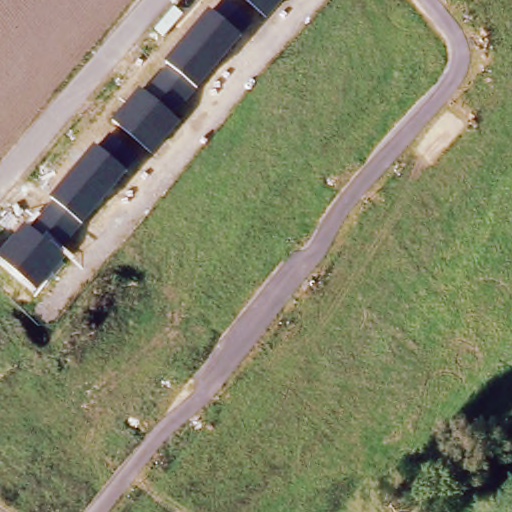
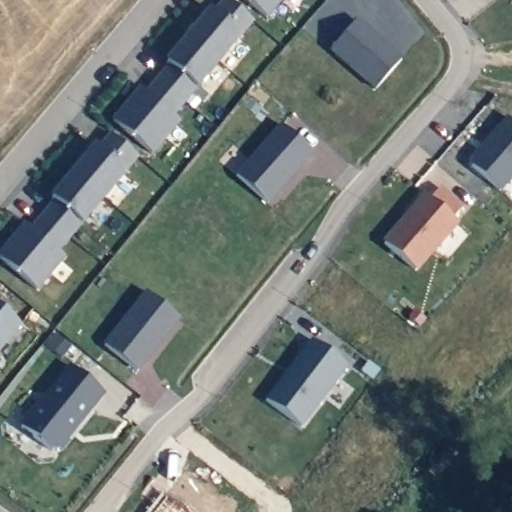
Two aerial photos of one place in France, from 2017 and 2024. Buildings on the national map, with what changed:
unchanged [(252,21),(240,36),(196,88),(173,116),(180,122),(153,154),(112,119),(138,87),(145,91),(168,63),(165,61),(208,9),(212,11),(222,0),(226,0),(252,21)]
unchanged [(267,18),(245,0),(283,0),(267,18)]
new [(402,59),(377,88),(331,48),(357,19),(402,59)]
new [(472,166),(472,158),(508,117),(512,120),(512,178),(502,190),(472,166)]
new [(235,175),(279,124),(313,154),(268,204),(235,175)]
unchanged [(138,156),(127,171),(82,225),(61,253),(65,256),(37,290),(0,258),(0,251),(24,223),(29,227),(53,200),(49,196),(93,144),(97,147),(109,133),(138,156)]
new [(417,270),(385,243),(427,195),(432,199),(440,188),(455,201),(463,208),(454,218),(458,222),(417,270)]
new [(148,293),(181,319),(139,371),(107,345),(148,293)]
new [(23,324),(0,352),(0,305),(23,324)]
new [(64,357),(50,345),(58,335),(72,346),(64,357)]
new [(313,340),(348,366),(302,427),(267,400),(313,340)]
new [(71,436),(60,450),(54,451),(23,426),(62,380),(63,380),(74,367),(105,391),(93,405),(95,406),(80,425),(78,424),(69,434),(71,436)]
new [(183,512),(154,512),(166,497),(183,512)]

